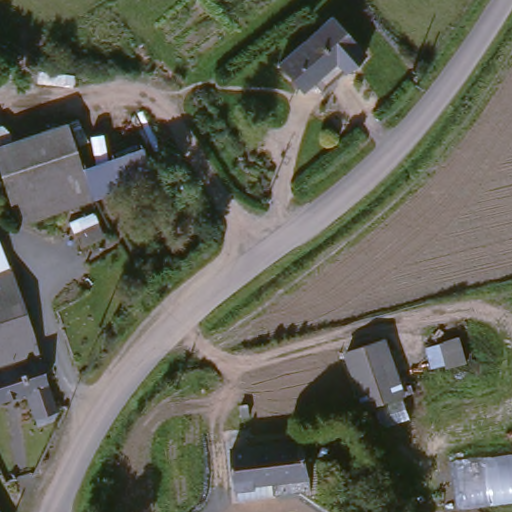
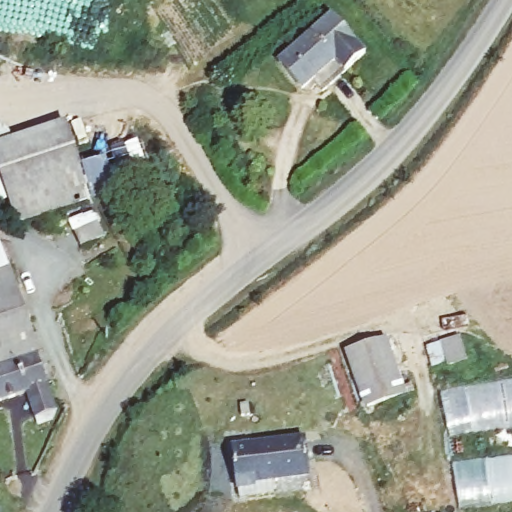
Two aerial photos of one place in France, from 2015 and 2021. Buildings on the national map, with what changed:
unchanged [(281,56),(335,10),(370,50),(323,91),(314,80),(306,86),(281,56)]
demolished [(109,123),(139,106),(162,142),(130,160),(109,123)]
unchanged [(24,220),(0,156),(0,135),(12,131),(18,145),(71,125),(94,196),(24,220)]
unchanged [(0,241),(3,239),(42,353),(0,368),(0,241)]
unchanged [(72,247),(97,239),(103,255),(78,263),(72,247)]
unchanged [(440,342),(459,336),(466,361),(447,367),(440,342)]
unchanged [(352,351),(390,338),(409,395),(371,408),(352,351)]
unchanged [(58,422),(42,425),(31,392),(0,402),(0,368),(42,353),(62,406),(58,422)]
new [(448,433),(440,389),(512,377),(512,423),(448,433)]
unchanged [(245,494),(243,483),(242,483),(237,443),(310,434),(315,470),(277,474),(279,489),(245,494)]
unchanged [(452,459),(512,452),(512,501),(457,508),(452,459)]
unchanged [(0,512),(0,503),(4,512),(0,512)]

